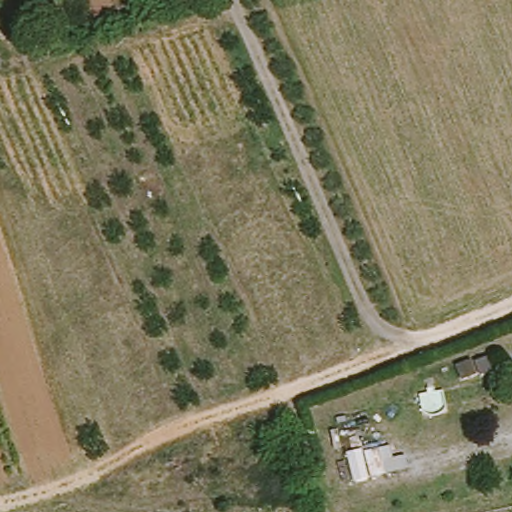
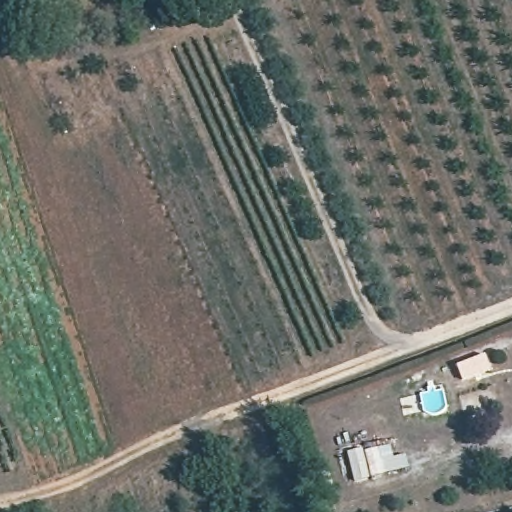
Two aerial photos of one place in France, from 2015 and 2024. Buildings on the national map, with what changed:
unchanged [(383,478),(369,482),(363,456),(377,452),(383,478)]

